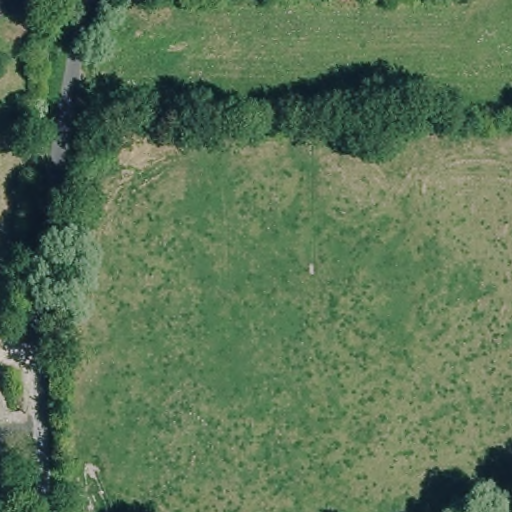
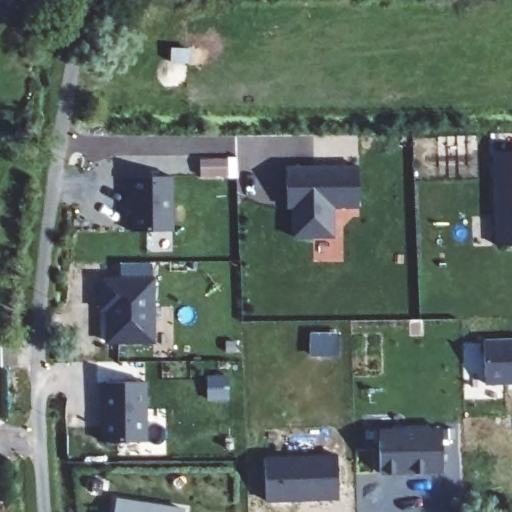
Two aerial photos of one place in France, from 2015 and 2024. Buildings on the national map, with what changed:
new [(497,154),(512,154),(512,247),(500,248),(497,154)]
new [(206,160),(232,160),(232,178),(206,178),(206,160)]
new [(295,209),(289,209),(289,190),(288,169),(360,168),(360,208),(335,208),(335,238),(295,238),(295,190),(295,209)]
new [(173,178),(173,233),(134,233),(133,212),(134,212),(134,201),(133,201),(132,179),(173,178)]
new [(109,310),(103,310),(103,281),(155,280),(155,343),(109,344),(109,310)]
new [(485,343),(512,342),(512,384),(487,385),(485,343)]
new [(147,384),(148,444),(106,444),(105,384),(147,384)]
new [(381,432),(444,430),(445,473),(412,474),(412,472),(402,472),(402,474),(382,474),(381,432)]
new [(270,503),(270,499),(266,499),(265,461),(270,461),(270,457),(337,454),(339,500),(270,503)]
new [(120,502),(186,512),(119,512),(120,502)]

